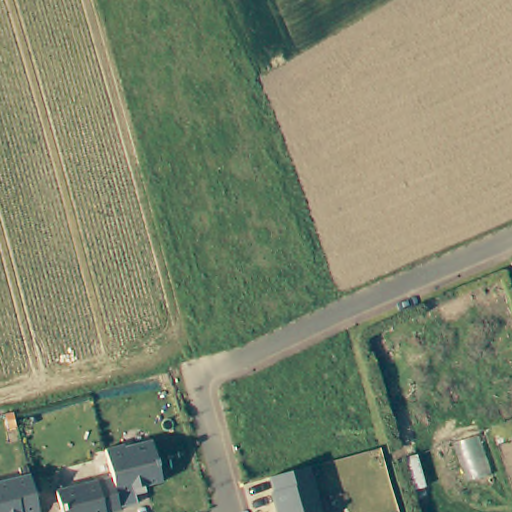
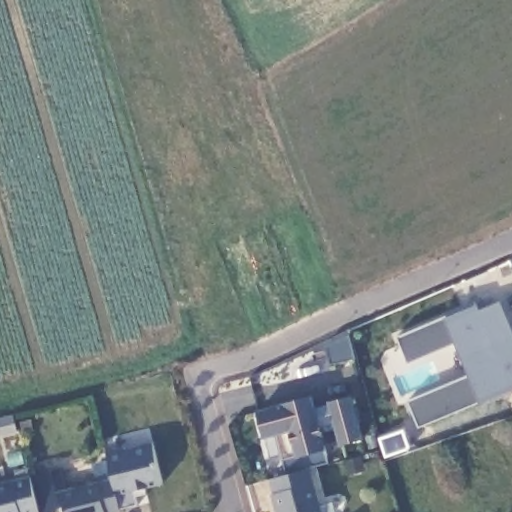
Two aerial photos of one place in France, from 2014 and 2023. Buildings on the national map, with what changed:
new [(445,317),(477,303),(481,309),(502,298),(512,323),(512,388),(481,401),(420,425),(408,399),(467,373),(454,342),(408,361),(398,336),(445,317)]
new [(315,406),(330,403),(329,399),(351,394),(363,439),(340,445),(334,422),(320,425),(330,461),(310,466),(321,512),(274,512),(269,494),(273,492),(270,478),(288,473),(277,433),(263,437),(258,408),(312,397),(315,406)]
unchanged [(120,449),(121,455),(149,448),(159,486),(130,493),(133,507),(116,512),(108,481),(102,453),(120,449)]
demolished [(273,512),(272,507),(270,508),(265,490),(267,490),(263,475),(302,465),(314,512),(273,512)]
unchanged [(0,512),(0,480),(25,475),(33,512),(0,512)]
unchanged [(56,512),(52,494),(108,481),(116,512),(56,512)]

